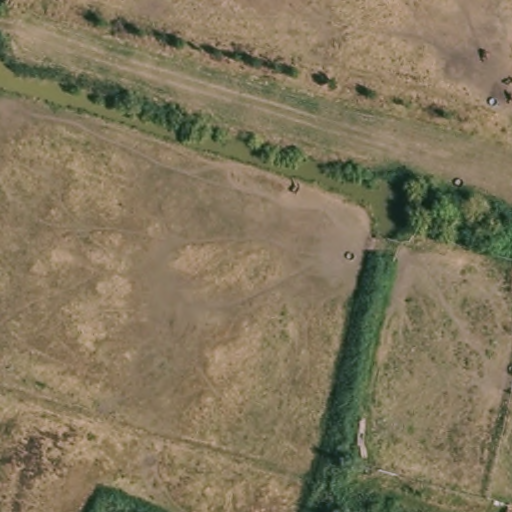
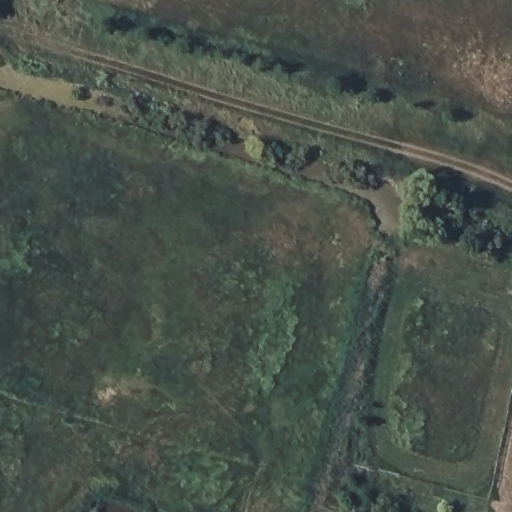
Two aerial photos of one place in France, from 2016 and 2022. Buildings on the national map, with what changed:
[]

